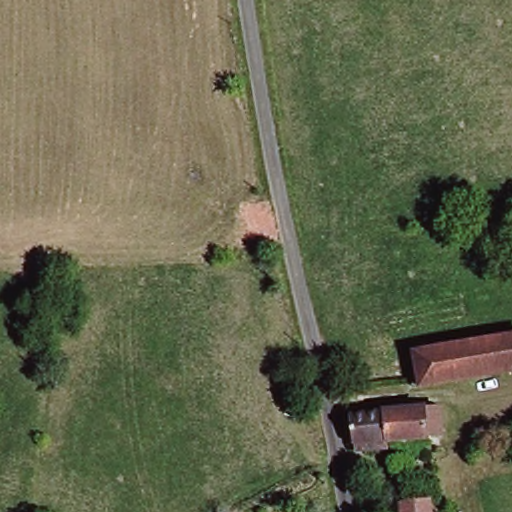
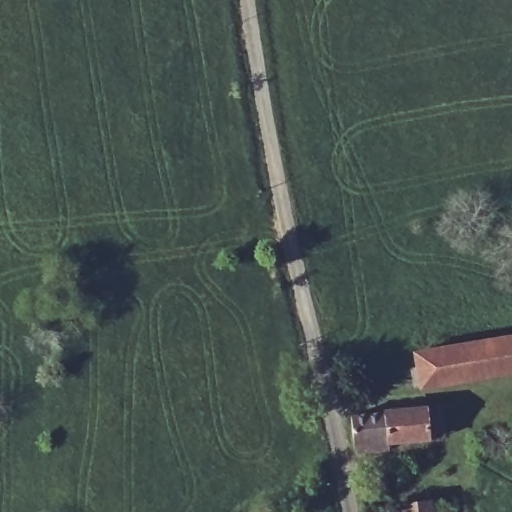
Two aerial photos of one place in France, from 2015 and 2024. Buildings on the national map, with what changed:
unchanged [(419,386),(415,353),(512,339),(512,373),(419,386)]
unchanged [(351,412),(426,407),(441,405),(445,434),(429,436),(353,442),(351,412)]
unchanged [(400,501),(429,497),(431,512),(401,512),(400,501)]

